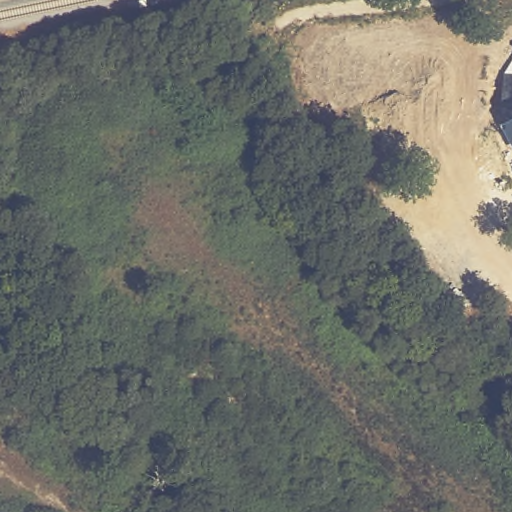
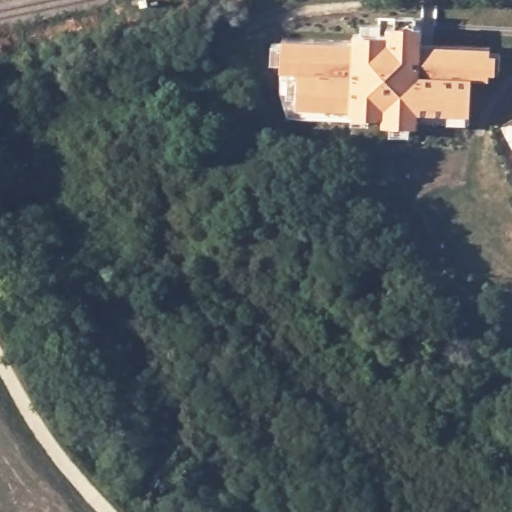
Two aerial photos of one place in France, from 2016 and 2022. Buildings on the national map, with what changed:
new [(273,41),(281,41),(281,36),(351,39),(351,30),(361,30),(361,21),(395,22),(395,15),(413,14),(413,25),(423,25),(422,42),(491,45),(491,53),(500,54),(499,71),(489,71),(489,79),(473,78),(470,113),(466,113),(466,121),(447,120),(448,113),(418,111),(418,124),(409,124),(409,135),(389,133),(390,125),(353,123),(353,112),(348,112),(348,107),(296,105),(296,95),(288,95),(288,78),(296,78),(296,70),(280,69),(280,62),(271,60),(273,41)]

